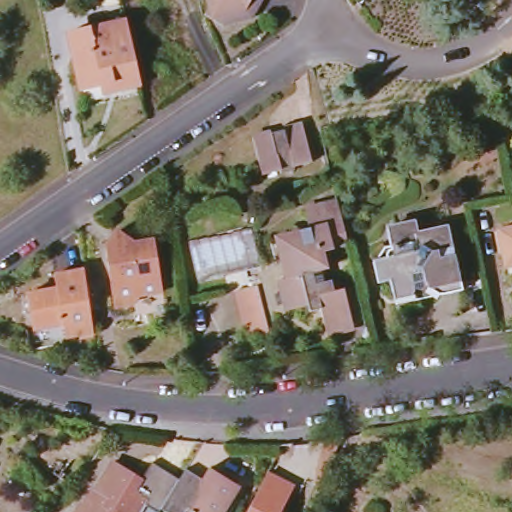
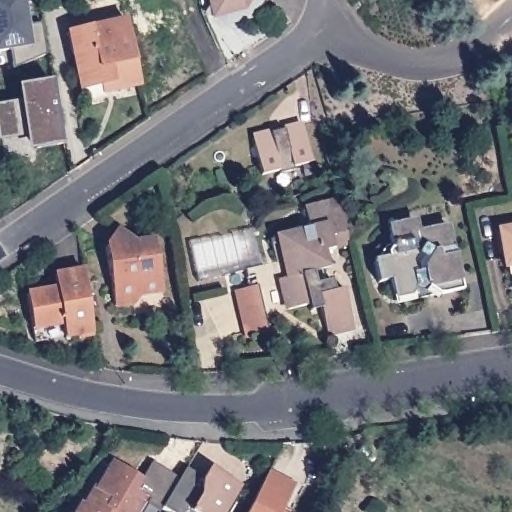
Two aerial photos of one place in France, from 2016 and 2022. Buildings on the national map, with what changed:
new [(24,0),(29,25),(42,23),(50,65),(15,71),(14,51),(0,53),(0,0),(24,0)]
unchanged [(248,18),(230,22),(213,12),(209,0),(257,0),(248,18)]
unchanged [(100,85),(79,90),(71,54),(79,51),(75,33),(124,21),(135,68),(139,85),(114,90),(102,94),(100,85)]
new [(19,101),(17,88),(51,81),(62,145),(29,151),(26,137),(0,140),(0,106),(19,101)]
unchanged [(315,161),(263,173),(255,136),(274,132),(275,135),(286,133),(286,129),(304,124),(315,161)]
unchanged [(361,227),(365,242),(342,247),(346,263),(340,264),(342,277),(349,276),(352,287),(362,284),(371,323),(345,329),(339,305),(328,307),(326,300),(304,305),(297,277),(297,274),(305,273),(300,257),(292,259),(287,237),(327,228),(321,204),(354,197),(361,227)]
unchanged [(462,284),(441,289),(436,262),(424,264),(427,279),(423,285),(416,283),(416,280),(396,285),(393,273),(379,275),(375,255),(395,251),(388,224),(414,219),(417,234),(449,226),(462,284)]
unchanged [(162,289),(138,293),(131,303),(114,304),(105,246),(117,229),(134,240),(155,239),(162,289)]
unchanged [(506,269),(498,233),(512,230),(512,268),(506,269)]
unchanged [(253,288),(272,283),(270,274),(264,275),(262,266),(276,263),(292,259),(300,257),(305,273),(297,274),(297,277),(283,280),(294,327),(292,327),(265,334),(253,288)]
unchanged [(34,333),(28,298),(58,292),(56,280),(85,274),(94,335),(67,340),(64,327),(34,333)]
unchanged [(146,501),(139,512),(72,512),(79,500),(83,502),(94,484),(97,485),(113,458),(129,468),(127,473),(139,479),(152,459),(181,474),(171,489),(165,498),(160,506),(159,509),(146,501)]
unchanged [(160,506),(165,498),(171,489),(181,474),(187,464),(204,474),(210,464),(239,482),(221,512),(170,512),(160,506)]
unchanged [(267,469),(294,484),(279,511),(281,512),(243,512),(267,469)]

